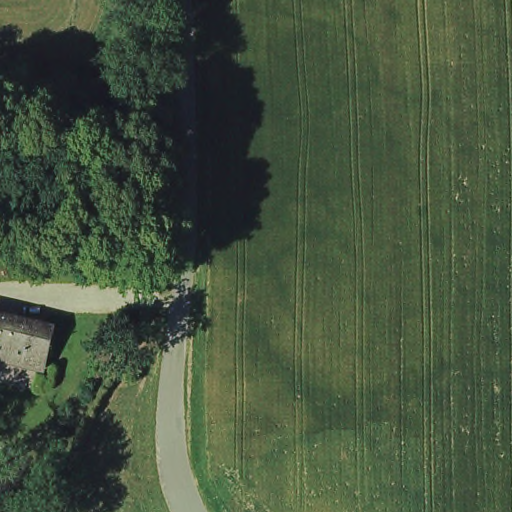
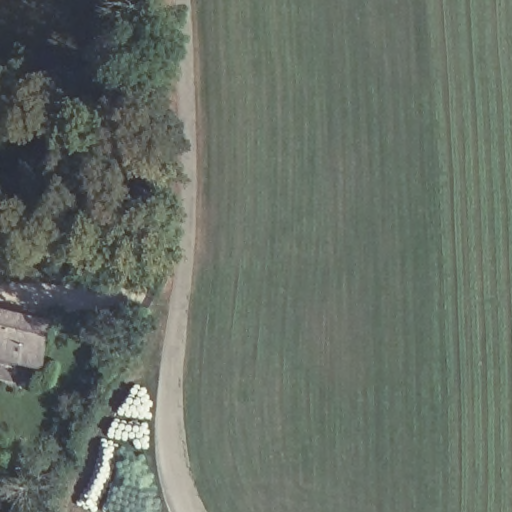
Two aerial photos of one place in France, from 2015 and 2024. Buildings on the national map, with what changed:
unchanged [(37,362),(0,355),(0,313),(45,322),(37,362)]

